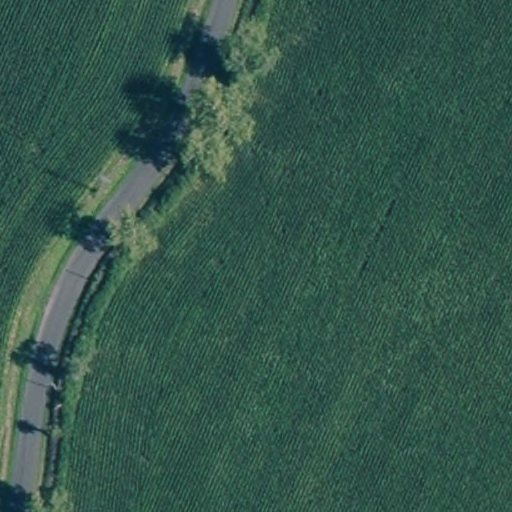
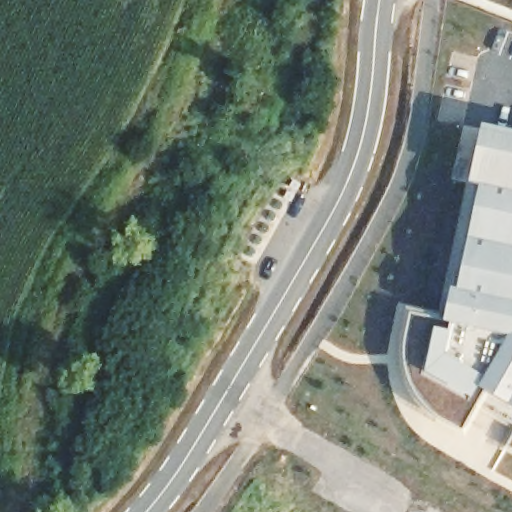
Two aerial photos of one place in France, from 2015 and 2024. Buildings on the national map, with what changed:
new [(483,401),(465,430),(432,410),(414,388),(407,359),(408,340),(414,314),(448,317),(453,291),(460,292),(482,186),(471,184),(484,125),(512,131),(512,420),(483,401)]
new [(508,447),(512,439),(512,449),(508,447)]

